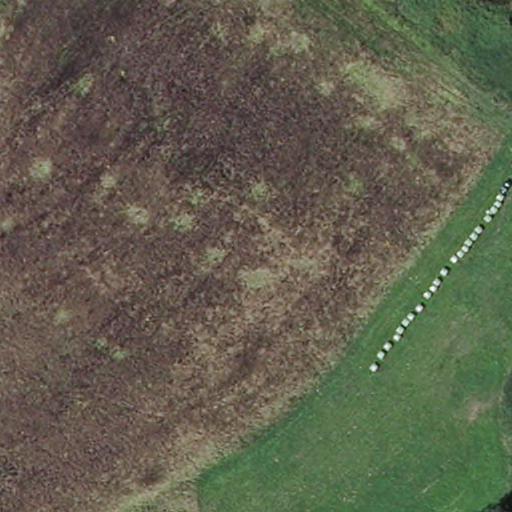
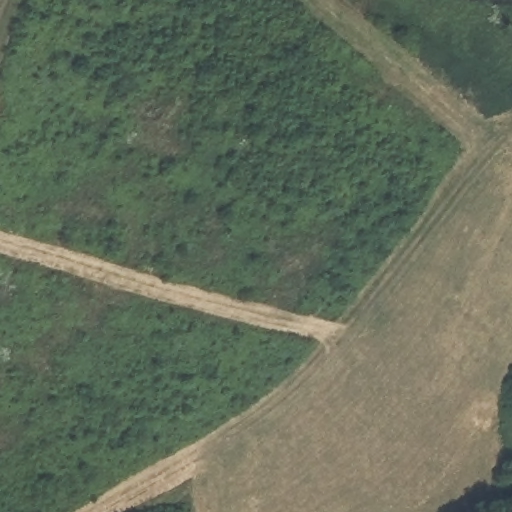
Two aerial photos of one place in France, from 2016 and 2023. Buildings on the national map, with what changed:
[]

